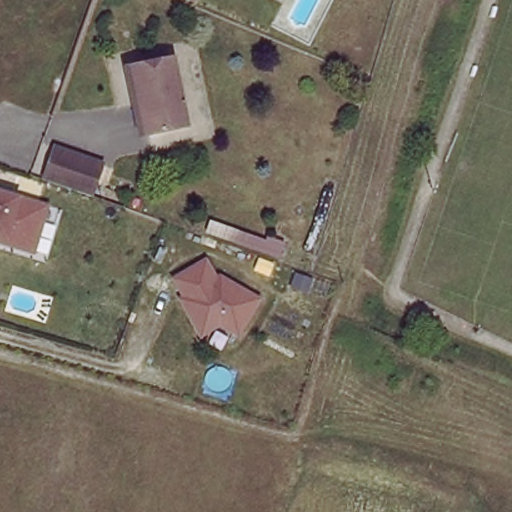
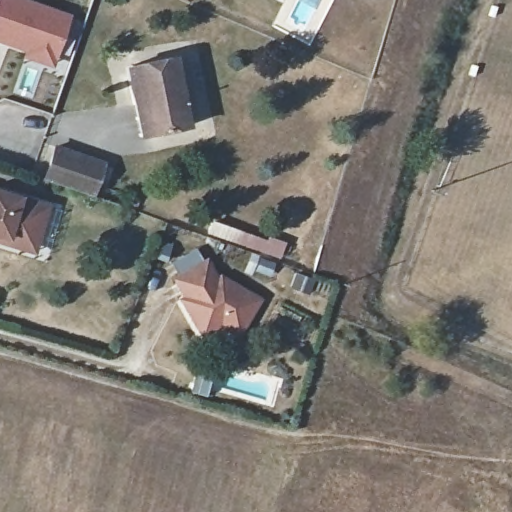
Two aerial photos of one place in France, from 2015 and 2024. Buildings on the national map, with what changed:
new [(59,74),(22,63),(24,55),(0,47),(0,0),(28,0),(74,16),(59,74)]
unchanged [(143,119),(140,120),(137,98),(142,97),(135,60),(151,57),(174,53),(176,66),(187,122),(154,129),(146,131),(143,119)]
unchanged [(59,148),(109,164),(98,198),(49,181),(59,148)]
unchanged [(38,252),(0,241),(0,190),(52,206),(38,252)]
unchanged [(288,244),(281,263),(206,243),(215,221),(288,244)]
unchanged [(208,257),(222,279),(265,297),(251,337),(225,328),(202,338),(172,276),(208,257)]

